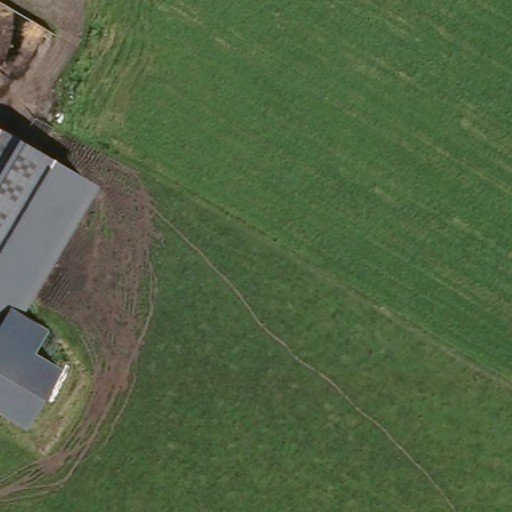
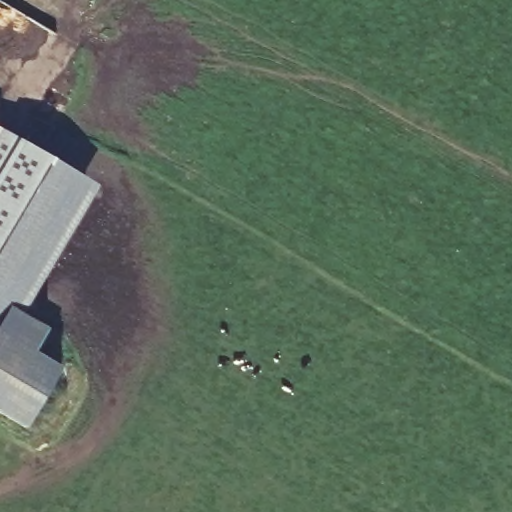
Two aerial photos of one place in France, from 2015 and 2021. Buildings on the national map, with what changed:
unchanged [(21,313),(49,329),(36,354),(63,369),(28,430),(0,414),(0,128),(100,188),(21,313)]

